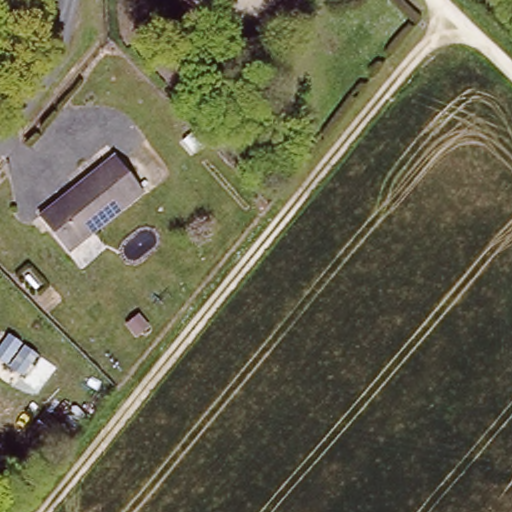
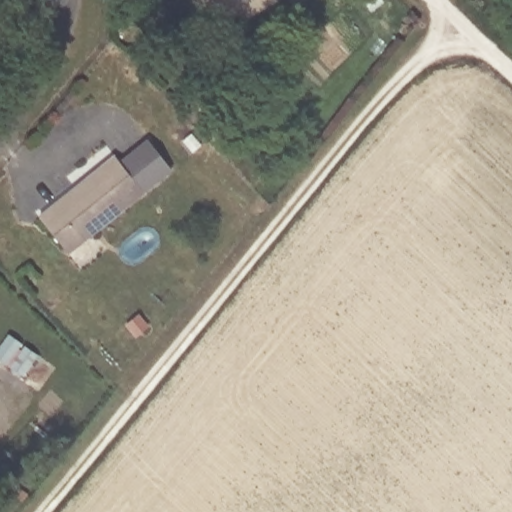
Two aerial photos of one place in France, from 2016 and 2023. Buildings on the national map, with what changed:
new [(142,194),(116,159),(146,136),(173,170),(142,194)]
unchanged [(116,159),(142,194),(65,250),(38,216),(116,159)]

